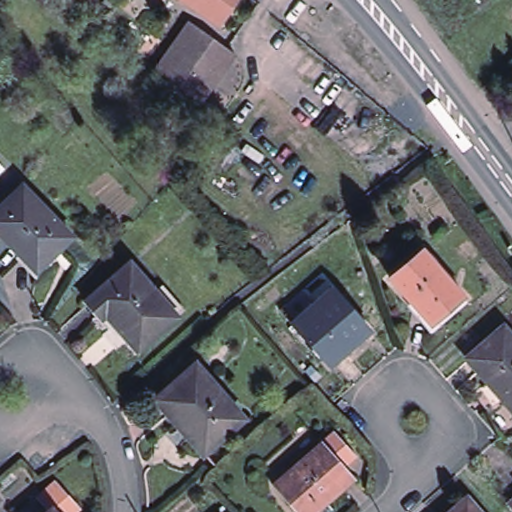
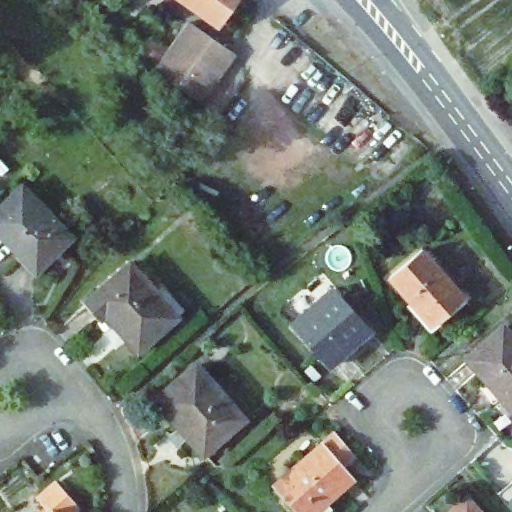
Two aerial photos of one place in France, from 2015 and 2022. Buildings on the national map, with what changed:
unchanged [(116,4),(109,0),(119,0),(116,4)]
unchanged [(219,23),(185,0),(235,0),(219,23)]
unchanged [(155,68),(189,24),(207,38),(172,82),(155,68)]
unchanged [(232,58),(198,101),(172,82),(207,38),(232,58)]
unchanged [(72,236),(36,271),(0,234),(0,207),(22,185),(72,236)]
unchanged [(423,252),(463,301),(430,327),(390,278),(423,252)]
unchanged [(130,262),(178,316),(137,351),(106,314),(100,319),(85,302),(130,262)]
unchanged [(372,331),(330,368),(290,322),(330,286),(372,331)]
unchanged [(502,332),(512,344),(512,410),(490,385),(488,387),(467,361),(502,332)]
unchanged [(195,365),(242,419),(203,453),(157,400),(195,365)]
unchanged [(348,466),(358,478),(319,512),(299,512),(277,486),(340,432),(360,456),(348,466)]
unchanged [(61,485),(84,511),(83,512),(56,512),(45,499),(61,485)]
unchanged [(449,512),(466,497),(479,512),(449,512)]
unchanged [(509,506),(512,503),(512,509),(509,506)]

